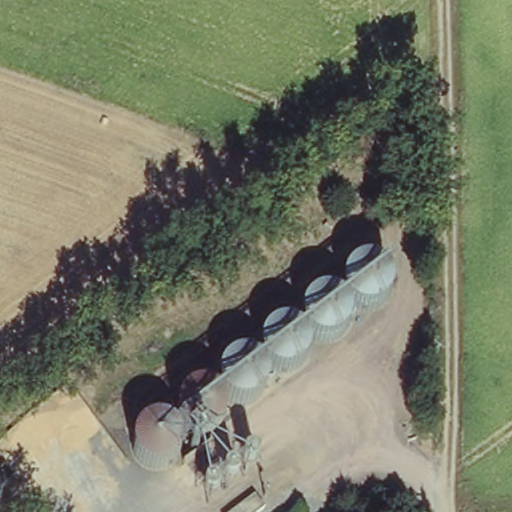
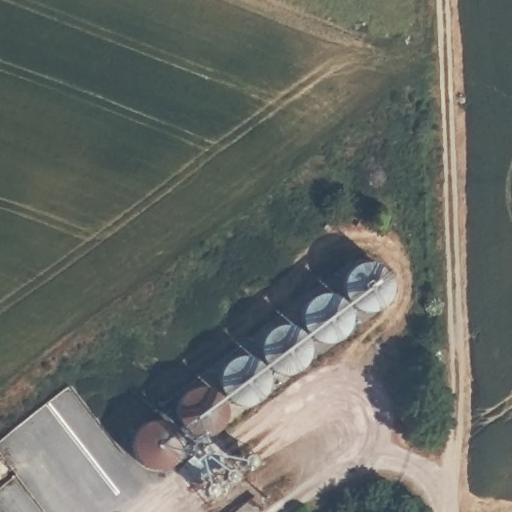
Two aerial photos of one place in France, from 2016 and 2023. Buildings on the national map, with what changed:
unchanged [(372,250),(403,289),(145,483),(116,444),(372,250)]

